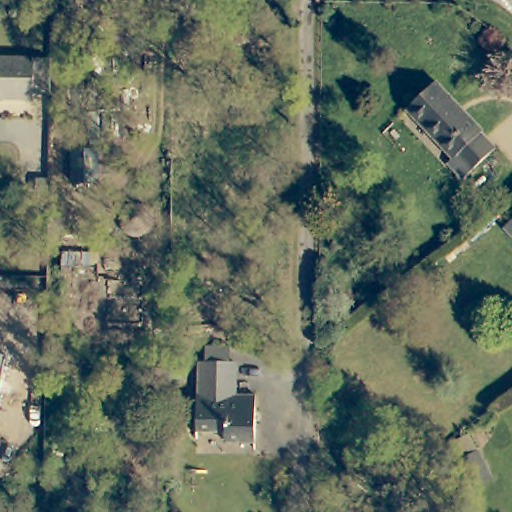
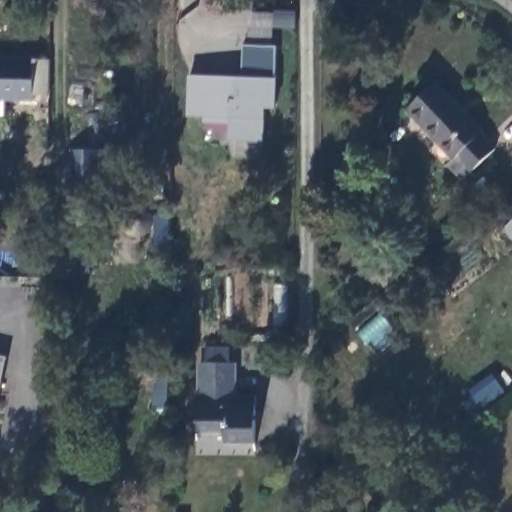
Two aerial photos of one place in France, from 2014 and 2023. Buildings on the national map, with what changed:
new [(276,79),(275,107),(265,107),(264,142),(230,142),(230,127),(204,127),(205,118),(187,117),(189,75),(243,77),(245,44),(277,45),(276,79)]
unchanged [(0,103),(0,57),(49,57),(49,93),(35,92),(34,101),(5,100),(5,103),(0,103)]
unchanged [(452,160),(406,113),(433,87),(482,135),(479,137),(492,152),(463,182),(447,167),(452,160)]
unchanged [(98,155),(97,189),(72,188),(72,155),(98,155)]
unchanged [(120,226),(122,221),(125,217),(129,215),(134,215),(139,215),(143,217),(146,222),(148,226),(148,231),(147,236),(144,240),(139,242),(135,243),(121,234),(120,231),(120,226)]
unchanged [(512,220),(512,242),(501,231),(512,220)]
unchanged [(59,255),(97,257),(96,271),(58,269),(59,255)]
demolished [(95,313),(57,311),(58,269),(96,271),(95,313)]
unchanged [(234,395),(256,395),(255,442),(223,442),(223,428),(193,426),(193,393),(196,393),(197,359),(204,359),(204,343),(230,343),(229,360),(235,360),(234,395)]
unchanged [(6,357),(0,384),(0,355),(6,357)]

